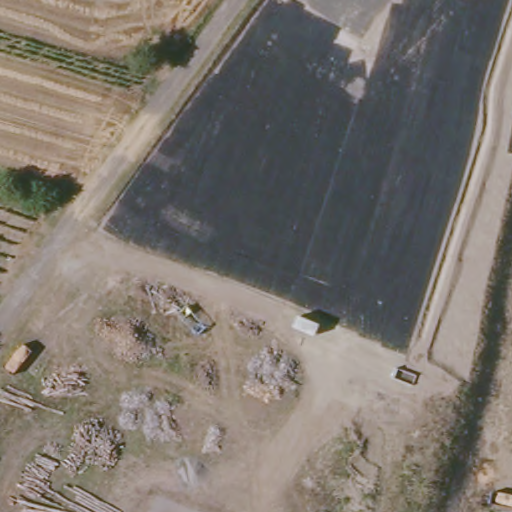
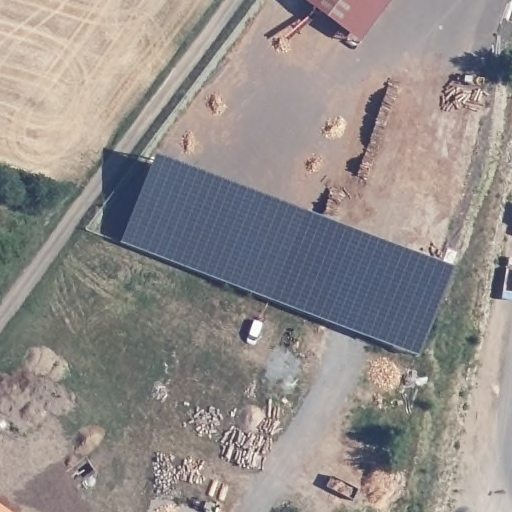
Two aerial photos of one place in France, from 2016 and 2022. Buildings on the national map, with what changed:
new [(391,0),(359,42),(302,0),(391,0)]
new [(421,360),(126,245),(159,149),(455,265),(421,360)]

